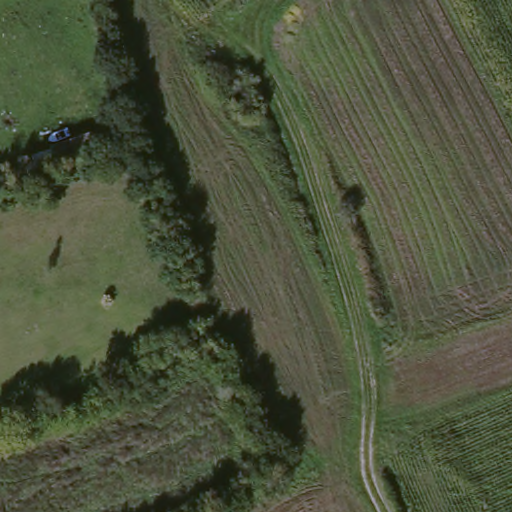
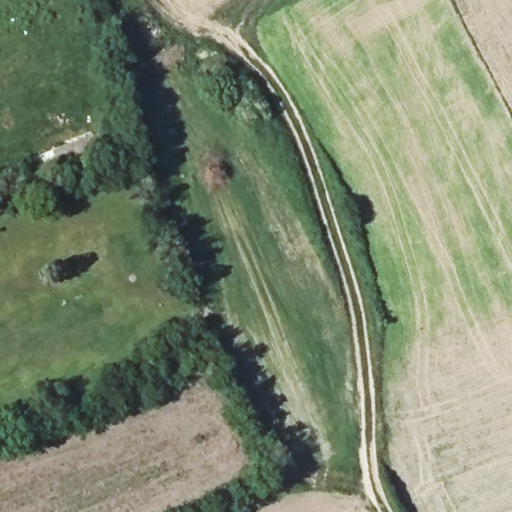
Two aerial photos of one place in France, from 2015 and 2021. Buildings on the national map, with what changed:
unchanged [(60,169),(52,149),(109,128),(116,149),(60,169)]

